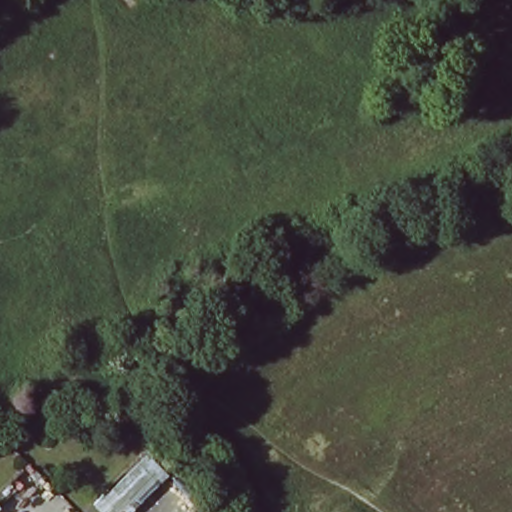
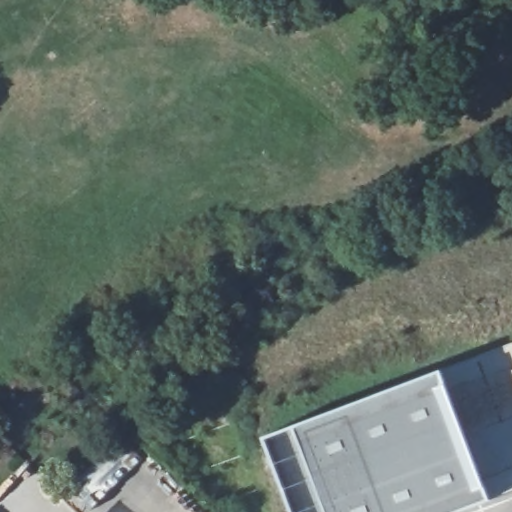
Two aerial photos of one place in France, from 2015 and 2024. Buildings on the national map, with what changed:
new [(463,512),(338,512),(305,423),(512,343),(512,494),(463,512)]
new [(305,423),(338,512),(292,512),(265,438),(305,423)]
unchanged [(149,447),(171,469),(129,512),(98,512),(92,506),(149,447)]

